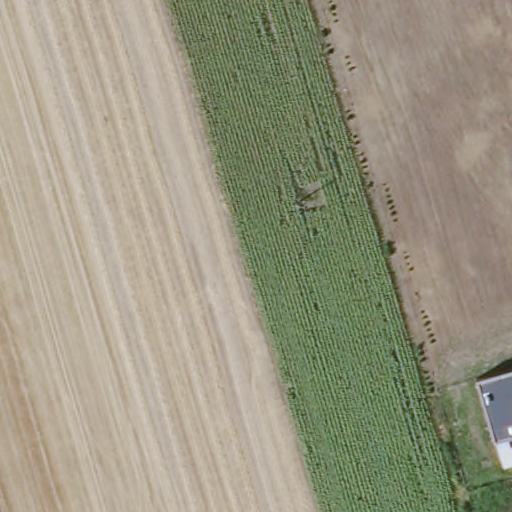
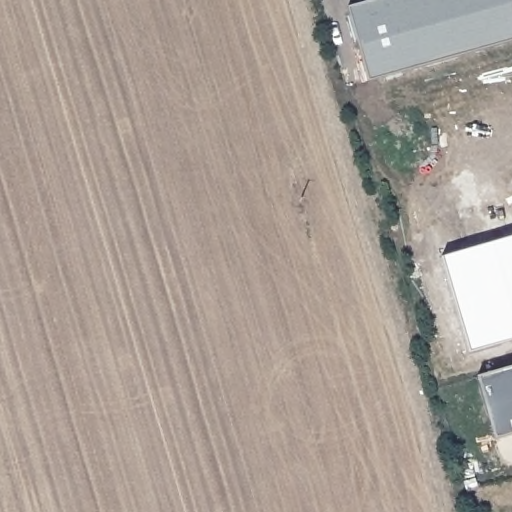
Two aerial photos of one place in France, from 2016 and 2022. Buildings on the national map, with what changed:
new [(346,10),(380,0),(512,0),(512,42),(367,83),(346,10)]
new [(445,258),(512,238),(512,345),(472,357),(445,258)]
unchanged [(512,435),(493,440),(475,377),(512,367),(512,435)]

